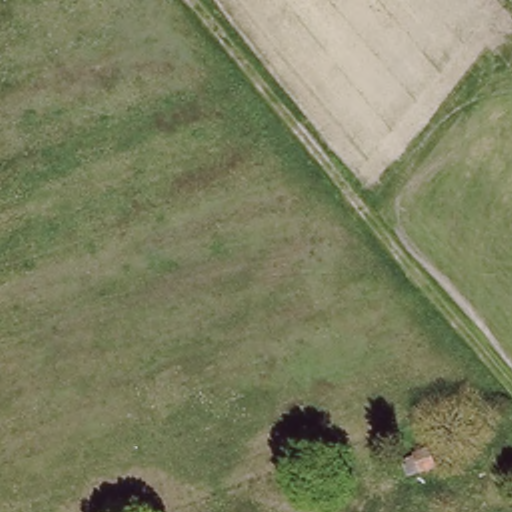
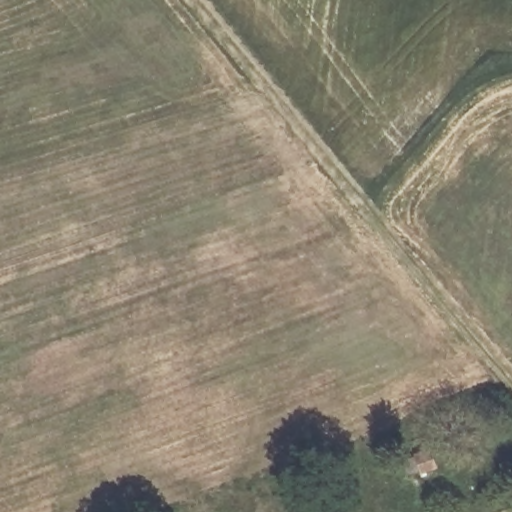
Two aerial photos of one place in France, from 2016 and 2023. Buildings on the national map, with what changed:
unchanged [(417,448),(430,444),(434,457),(422,461),(417,448)]

